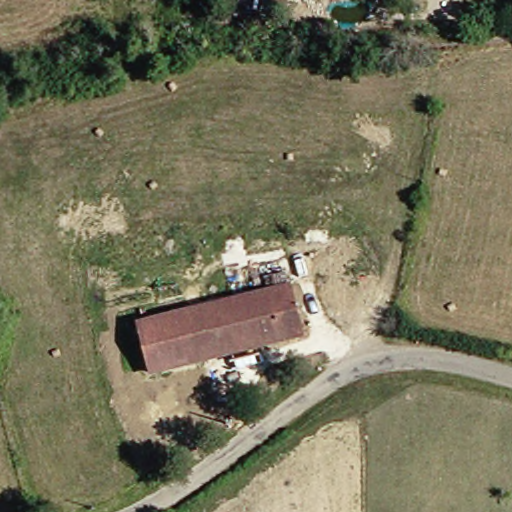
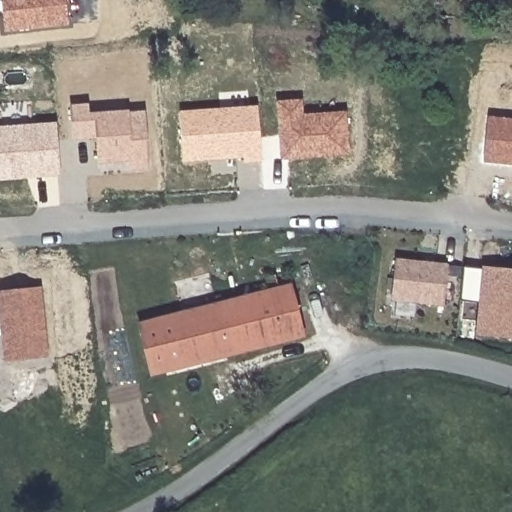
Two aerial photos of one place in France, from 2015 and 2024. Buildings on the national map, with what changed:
new [(4,34),(0,0),(66,0),(69,26),(4,34)]
new [(303,115),(347,111),(351,154),(282,161),(276,101),(302,99),(303,115)]
new [(150,169),(132,170),(131,161),(99,164),(97,136),(75,139),(70,104),(88,103),(89,114),(128,109),(128,113),(145,110),(150,169)]
new [(262,163),(244,164),(244,158),(183,163),(178,111),(258,105),(262,163)]
new [(488,117),(512,120),(512,166),(483,164),(488,117)]
new [(60,176),(0,182),(0,126),(57,122),(60,176)]
new [(446,306),(393,300),(397,260),(450,266),(446,306)]
new [(450,267),(464,268),(463,278),(449,277),(450,267)]
new [(483,304),(462,302),(466,268),(512,272),(512,338),(480,334),(481,325),(483,304)]
unchanged [(293,284),(306,336),(157,374),(145,323),(293,284)]
new [(49,358),(4,363),(0,327),(0,290),(41,286),(49,358)]

